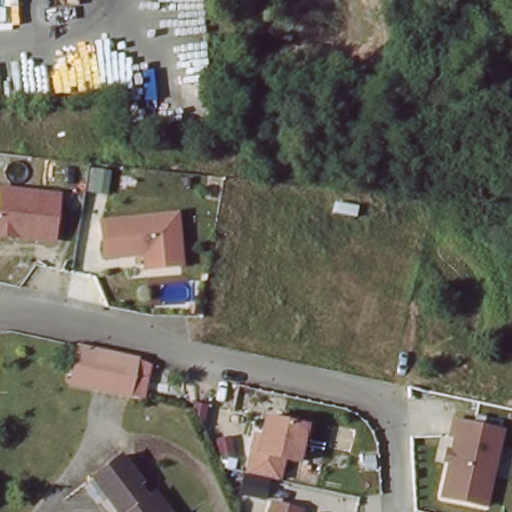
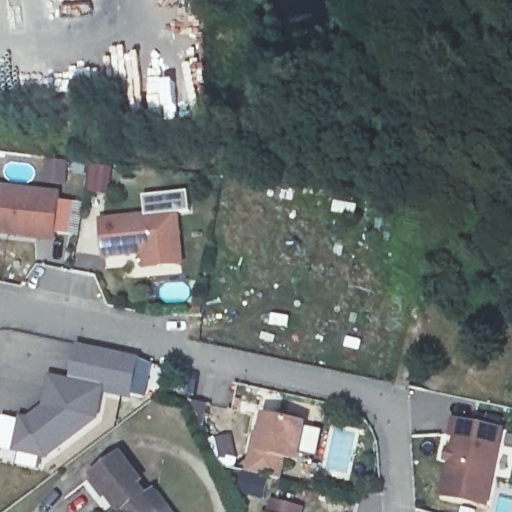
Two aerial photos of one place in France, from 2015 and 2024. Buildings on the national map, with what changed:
unchanged [(53,241),(0,233),(0,185),(59,191),(53,241)]
unchanged [(150,271),(148,259),(106,261),(103,220),(186,214),(192,269),(150,271)]
unchanged [(71,384),(78,342),(139,353),(132,393),(71,384)]
new [(72,379),(71,384),(106,389),(99,419),(48,459),(13,453),(20,417),(29,418),(43,406),(50,376),(72,379)]
unchanged [(309,424),(301,462),(289,461),(283,477),(249,471),(255,434),(261,433),(265,413),(309,424)]
unchanged [(504,429),(487,505),(443,497),(456,437),(449,433),(455,417),(504,429)]
unchanged [(124,456),(146,484),(141,487),(160,512),(120,512),(96,477),(124,456)]
unchanged [(304,512),(269,512),(272,500),(305,509),(304,512)]

